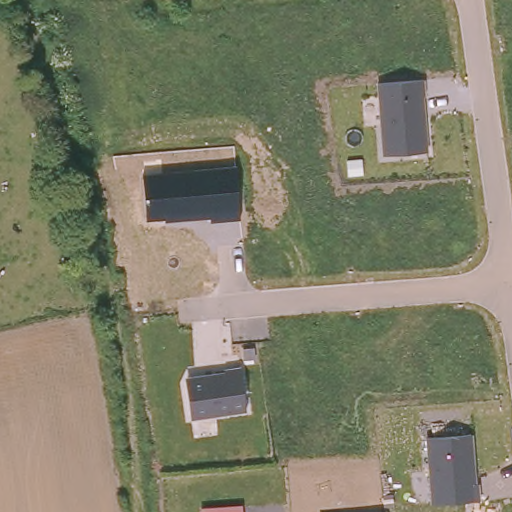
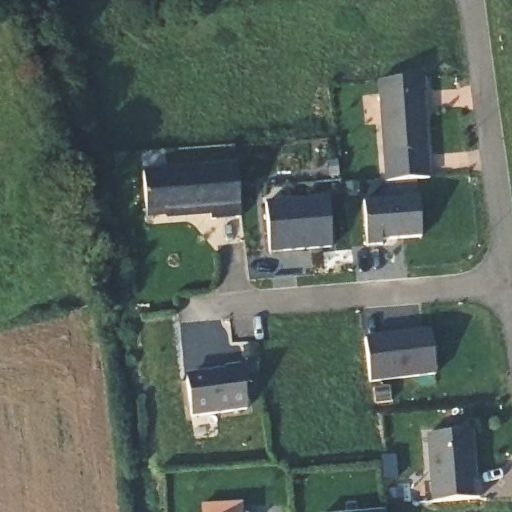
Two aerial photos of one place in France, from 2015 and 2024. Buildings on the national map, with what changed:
unchanged [(425,78),(427,99),(425,100),(428,151),(383,155),(377,81),(425,78)]
unchanged [(166,170),(165,167),(238,162),(242,217),(212,219),(210,216),(166,220),(165,218),(145,219),(141,173),(166,170)]
new [(418,199),(421,239),(382,242),(382,247),(367,248),(363,203),(418,199)]
new [(327,201),(331,249),(268,254),(265,206),(327,201)]
new [(430,329),(435,374),(370,381),(361,336),(430,329)]
unchanged [(222,371),(222,367),(243,364),(247,409),(190,417),(185,377),(222,371)]
unchanged [(473,433),(477,479),(481,479),(482,498),(432,504),(427,437),(473,433)]
unchanged [(242,502),(243,512),(200,512),(200,505),(242,502)]

